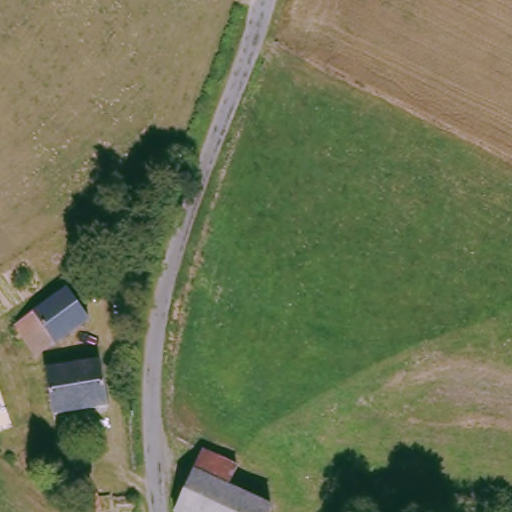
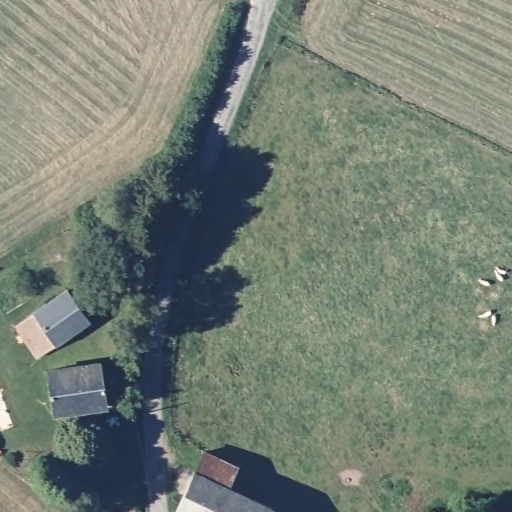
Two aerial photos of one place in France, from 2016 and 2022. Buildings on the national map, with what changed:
unchanged [(84,315),(35,353),(15,327),(64,289),(84,315)]
unchanged [(109,404),(57,412),(49,368),(100,359),(109,404)]
unchanged [(226,483),(268,505),(264,512),(177,512),(172,509),(181,492),(202,449),(234,467),(226,483)]
unchanged [(94,512),(86,512),(82,498),(98,494),(100,510),(94,512)]

